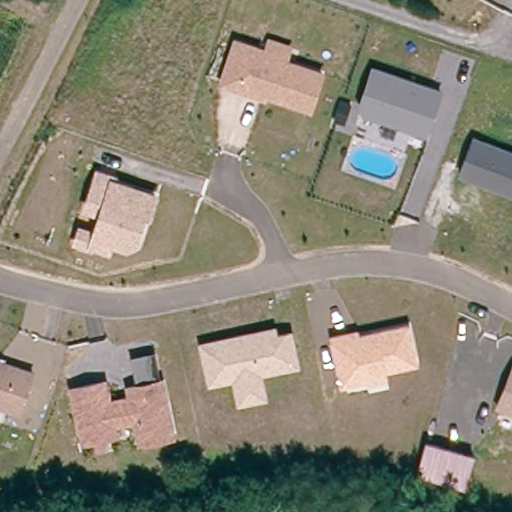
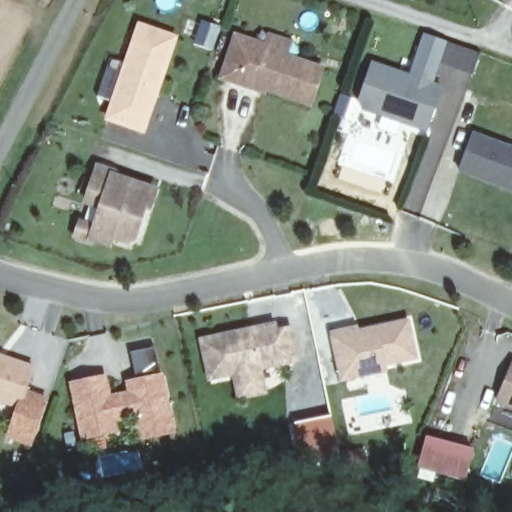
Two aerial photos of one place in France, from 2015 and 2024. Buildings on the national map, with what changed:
new [(200,20),(221,27),(212,50),(192,43),(200,20)]
new [(137,24),(177,38),(143,134),(106,120),(137,24)]
new [(408,77),(423,34),(479,52),(472,75),(439,65),(432,86),(408,77)]
unchanged [(255,88),(221,75),(237,35),(267,46),(271,36),(290,42),(285,56),(320,69),(307,103),(264,87),(262,91),(255,88)]
unchanged [(361,107),(358,98),(372,62),(437,87),(421,130),(408,125),(399,121),(361,107)]
unchanged [(460,171),(472,132),(512,148),(512,191),(460,171)]
unchanged [(71,237),(76,221),(92,226),(99,204),(82,199),(96,164),(113,171),(111,174),(152,191),(145,208),(137,206),(133,217),(136,218),(129,237),(121,241),(106,236),(103,242),(88,237),(87,242),(71,237)]
unchanged [(408,317),(415,355),(386,363),(387,370),(340,383),(328,331),(356,323),(358,328),(408,317)]
unchanged [(238,401),(235,388),(233,376),(209,380),(202,342),(251,333),(252,341),(275,336),(290,333),(295,364),(281,367),(258,371),(260,383),(262,396),(238,401)]
unchanged [(136,437),(134,425),(132,415),(111,418),(112,428),(80,433),(71,381),(104,375),(106,391),(128,387),(127,382),(135,381),(130,351),(155,347),(159,376),(163,398),(168,431),(136,437)]
unchanged [(19,407),(0,400),(0,354),(34,367),(19,407)]
unchanged [(512,364),(512,406),(496,398),(512,364)]
unchanged [(463,476),(417,464),(425,432),(471,447),(463,476)]

